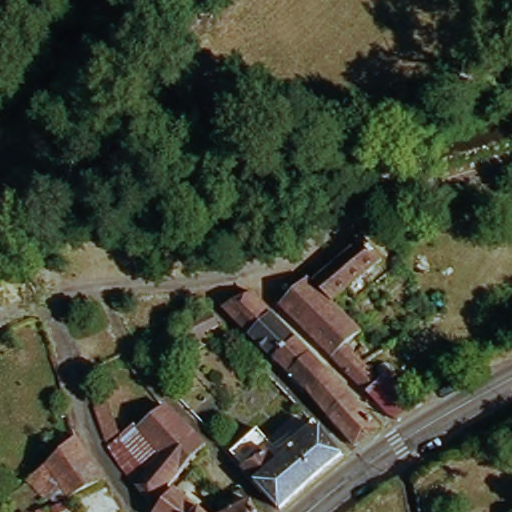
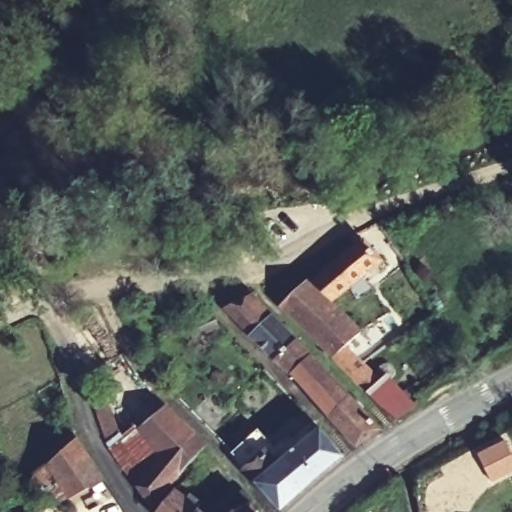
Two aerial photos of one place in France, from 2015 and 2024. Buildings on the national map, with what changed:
unchanged [(307,278),(356,236),(377,259),(331,302),(307,278)]
unchanged [(279,303),(307,278),(331,302),(359,332),(346,343),(362,360),(373,374),(362,386),(332,356),(279,303)]
unchanged [(251,292),(310,353),(287,373),(224,308),(251,292)]
unchanged [(157,310),(185,298),(192,313),(178,319),(184,331),(170,338),(157,310)]
unchanged [(287,373),(310,353),(350,395),(327,415),(287,373)]
unchanged [(389,364),(395,365),(400,370),(400,377),(394,383),(400,391),(411,406),(390,415),(367,390),(384,380),(382,370),(389,364)]
unchanged [(354,443),(327,415),(350,395),(380,427),(354,443)]
unchanged [(147,507),(110,445),(97,419),(92,405),(104,403),(117,439),(160,404),(204,450),(147,507)]
unchanged [(265,443),(257,450),(274,468),(318,429),(337,451),(277,506),(227,450),(253,428),(265,443)]
unchanged [(101,480),(64,498),(54,485),(36,493),(22,478),(74,439),(101,480)]
new [(510,443),(512,447),(512,478),(488,488),(478,455),(510,443)]
unchanged [(23,503),(19,497),(24,495),(27,501),(23,503)]
unchanged [(215,507),(241,495),(250,512),(219,512),(215,507)]
unchanged [(173,498),(192,512),(159,512),(173,498)]

